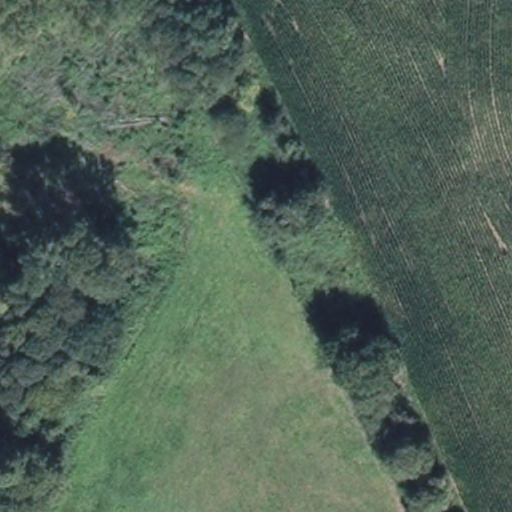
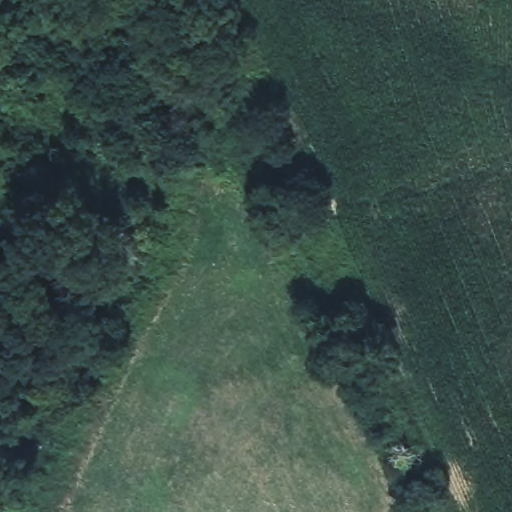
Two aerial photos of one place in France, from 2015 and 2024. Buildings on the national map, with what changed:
[]

